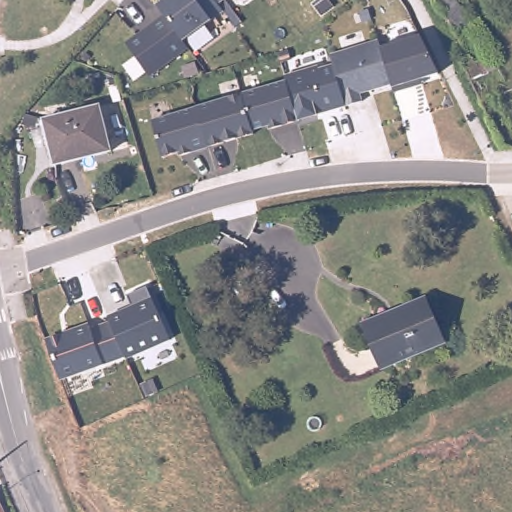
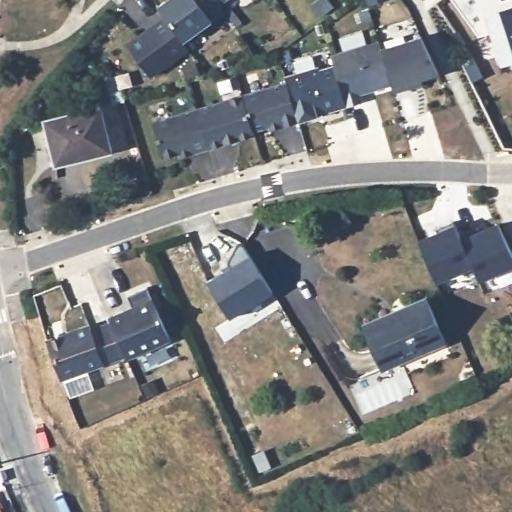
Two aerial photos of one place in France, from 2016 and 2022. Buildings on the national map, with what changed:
unchanged [(164,15),(155,4),(162,0),(230,0),(220,8),(223,12),(183,41),(190,50),(150,79),(126,44),(164,15)]
demolished [(456,37),(430,0),(450,0),(470,26),(456,37)]
new [(451,0),(501,0),(507,9),(512,7),(512,52),(500,55),(492,33),(478,37),(451,0)]
unchanged [(438,72),(361,96),(363,101),(298,119),(288,87),(286,82),(285,79),(333,63),(331,58),(380,43),(381,49),(420,36),(438,72)]
unchanged [(179,153),(163,158),(152,122),(230,99),(286,82),(288,87),(298,121),(282,126),(268,130),(267,126),(252,131),(254,134),(242,138),(237,139),(225,143),(192,153),(180,157),(179,153)]
unchanged [(100,106),(110,150),(94,154),(94,151),(55,160),(45,120),(100,106)]
new [(432,233),(430,229),(449,220),(455,234),(468,264),(431,281),(414,241),(432,233)]
new [(473,226),(475,230),(493,223),(511,262),(475,278),(468,264),(455,234),(473,226)]
new [(227,268),(224,264),(235,243),(240,245),(270,292),(227,319),(205,282),(227,268)]
unchanged [(47,339),(90,324),(92,330),(110,324),(111,324),(107,317),(127,308),(131,308),(127,296),(146,288),(170,342),(125,360),(60,380),(47,339)]
unchanged [(397,313),(425,302),(442,344),(377,371),(360,328),(397,313)]

